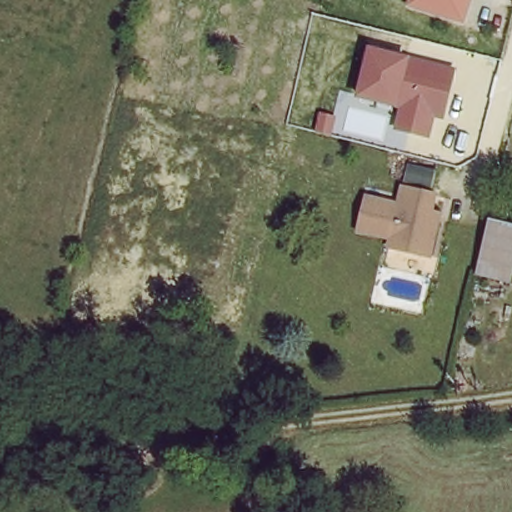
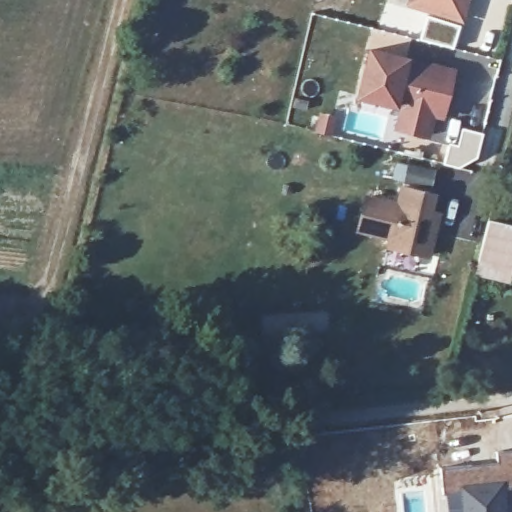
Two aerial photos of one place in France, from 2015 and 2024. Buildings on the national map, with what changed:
unchanged [(462,22),(405,3),(406,0),(469,0),(462,22)]
unchanged [(442,119),(434,117),(429,137),(393,129),(399,109),(354,97),(367,46),(455,67),(442,119)]
unchanged [(431,221),(434,221),(420,262),(387,252),(387,243),(357,232),(364,200),(397,208),(402,194),(434,202),(431,221)]
unchanged [(512,236),(512,260),(503,287),(472,277),(487,228),(512,236)]
new [(442,492),(440,468),(497,461),(496,451),(512,449),(512,485),(502,486),(505,512),(462,512),(460,490),(442,492)]

